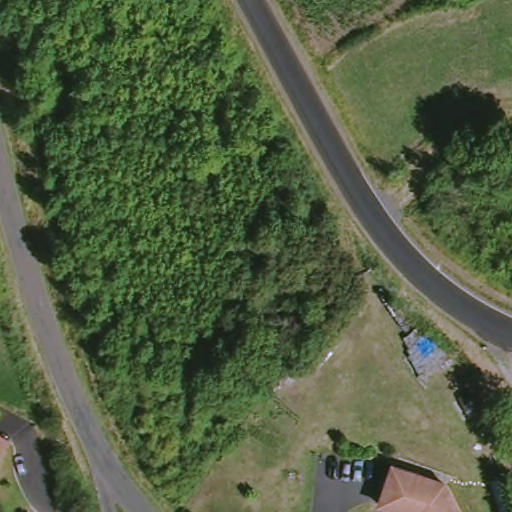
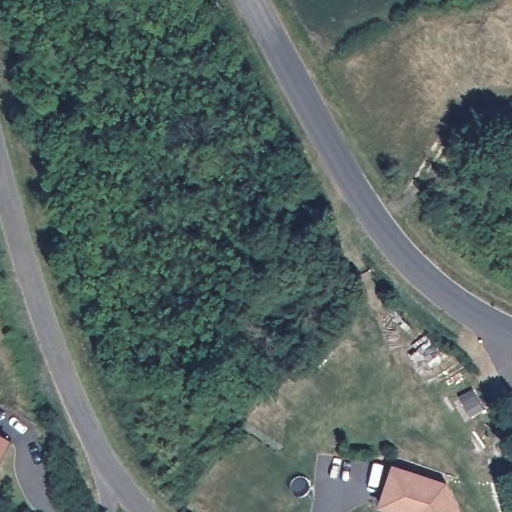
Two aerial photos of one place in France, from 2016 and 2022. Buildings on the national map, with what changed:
unchanged [(484,391),(491,404),(478,411),(471,398),(484,391)]
unchanged [(6,451),(0,463),(0,436),(11,442),(6,451)]
unchanged [(399,470),(453,487),(464,512),(400,512),(389,507),(399,470)]

